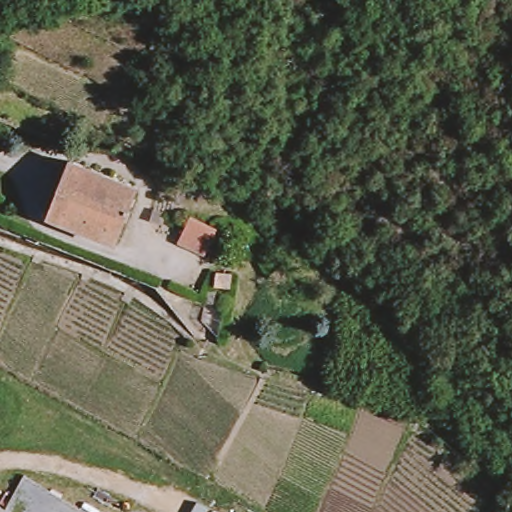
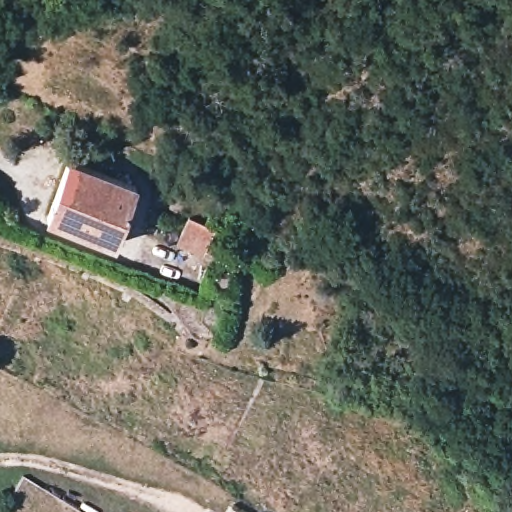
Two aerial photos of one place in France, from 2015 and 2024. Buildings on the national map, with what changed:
unchanged [(70,163),(133,188),(112,242),(48,217),(70,163)]
unchanged [(187,217),(213,228),(202,252),(175,241),(187,217)]
unchanged [(3,512),(0,512),(0,507),(5,510),(3,512)]

